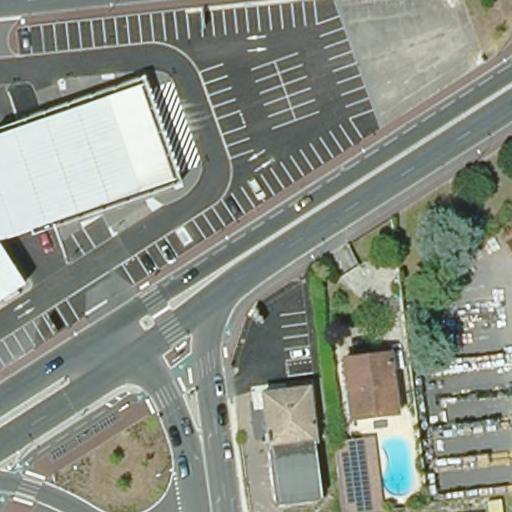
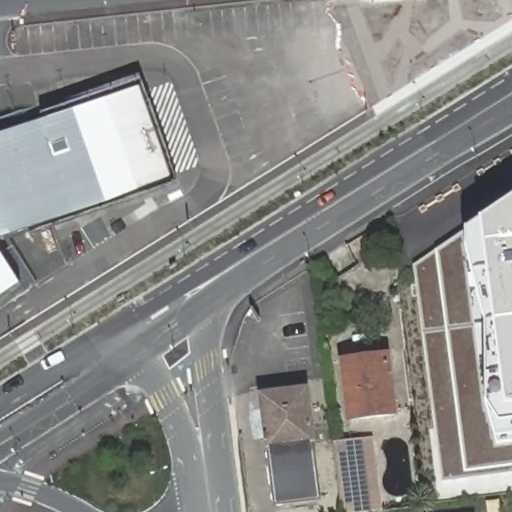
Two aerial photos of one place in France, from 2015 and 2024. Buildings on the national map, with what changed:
unchanged [(170,182),(0,242),(0,134),(136,88),(170,182)]
new [(442,482),(413,266),(465,230),(480,221),(512,198),(512,474),(442,482)]
unchanged [(0,299),(0,255),(19,287),(0,299)]
unchanged [(351,417),(344,360),(368,357),(389,354),(390,361),(396,412),(351,417)]
unchanged [(310,447),(308,447),(315,505),(271,510),(264,447),(261,447),(260,438),(263,438),(259,407),(258,398),(268,397),(304,393),(310,447)]
unchanged [(373,438),(382,511),(374,512),(363,512),(355,440),(373,438)]
unchanged [(334,442),(355,440),(363,512),(343,512),(334,442)]
demolished [(507,481),(511,509),(496,511),(493,483),(507,481)]
new [(486,502),(500,500),(501,512),(487,512),(486,502)]

